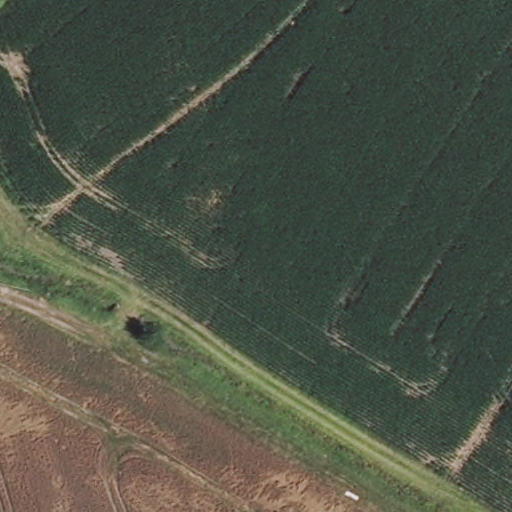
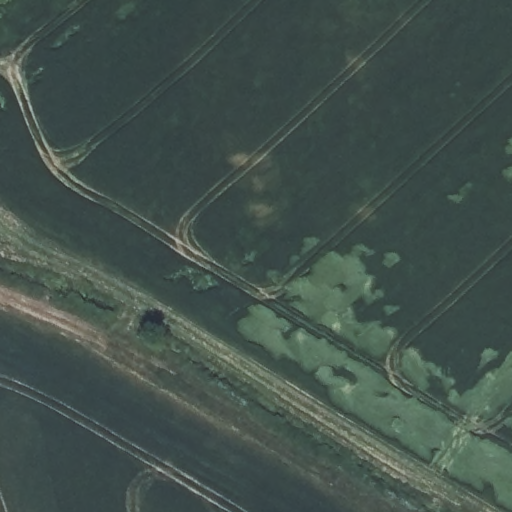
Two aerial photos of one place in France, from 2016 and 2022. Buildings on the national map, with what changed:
[]

